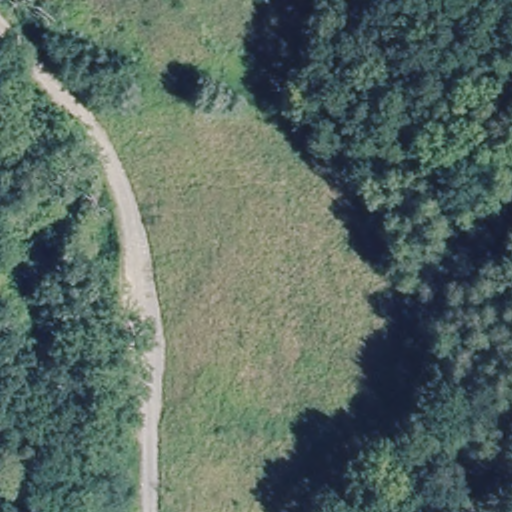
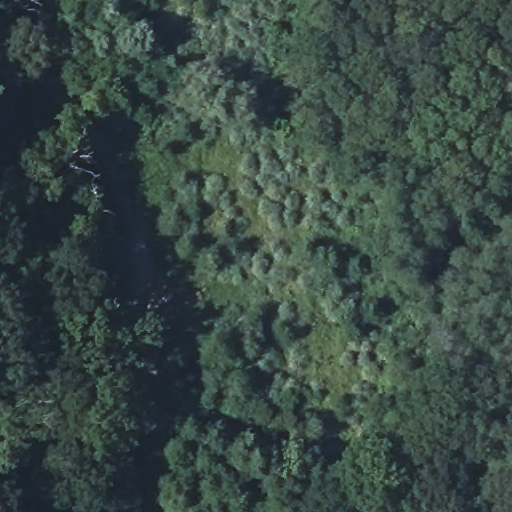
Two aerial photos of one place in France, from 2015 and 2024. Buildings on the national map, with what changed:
[]

